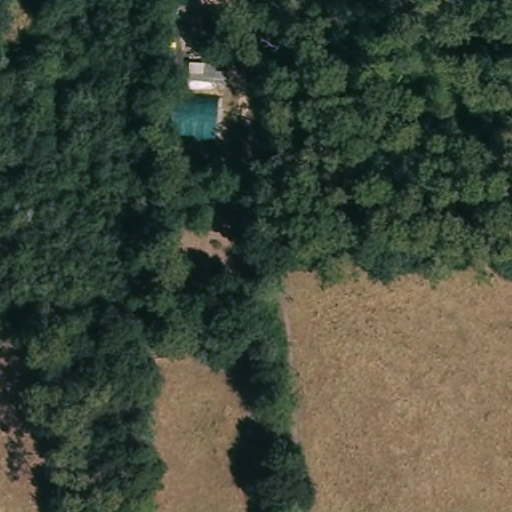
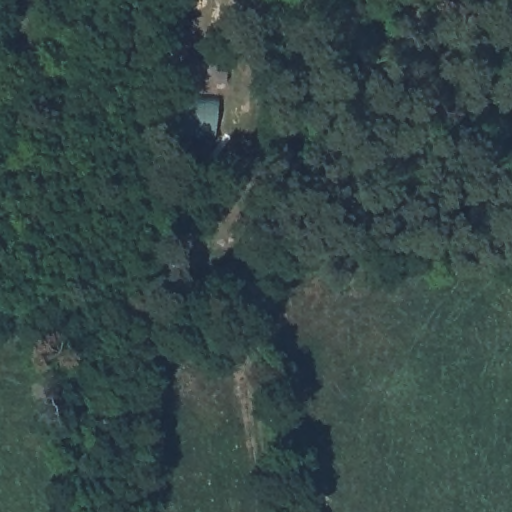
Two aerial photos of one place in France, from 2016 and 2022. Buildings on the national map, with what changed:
unchanged [(214,137),(171,133),(175,91),(218,95),(214,137)]

